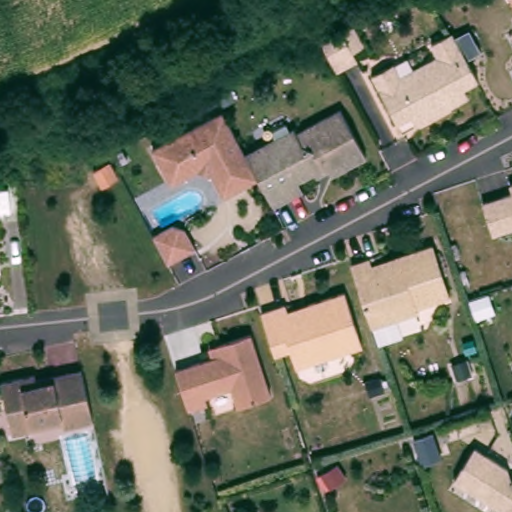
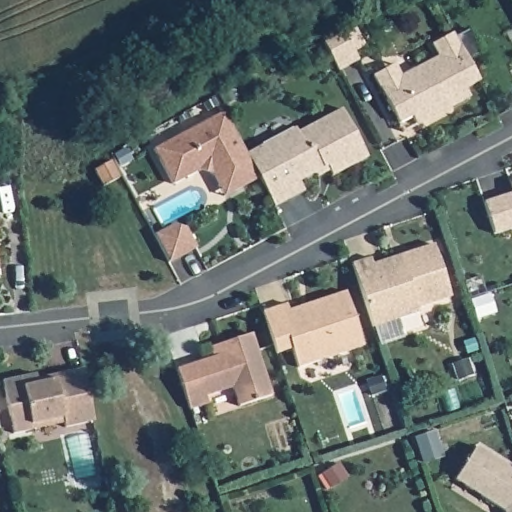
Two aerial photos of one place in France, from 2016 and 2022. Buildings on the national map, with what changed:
unchanged [(359,22),(369,41),(358,47),(363,55),(343,66),(328,37),(348,27),(359,22)]
unchanged [(470,88),(474,97),(421,125),(417,116),(404,123),(384,87),(378,75),(399,64),(406,76),(443,56),(437,44),(458,32),(484,81),(470,88)]
unchanged [(320,167),(303,176),(308,186),(279,201),(264,172),(251,149),(300,122),(302,127),(346,104),(372,152),(337,170),(334,165),(322,171),(320,167)]
unchanged [(223,182),(216,170),(203,165),(177,180),(158,144),(229,107),(251,149),(264,172),(239,186),(228,192),(223,182)]
unchanged [(111,161),(119,177),(103,186),(94,170),(111,161)]
unchanged [(489,202),(512,194),(512,229),(499,234),(489,202)]
unchanged [(173,225),(185,229),(195,247),(168,262),(154,235),(173,225)]
unchanged [(377,259),(404,250),(438,239),(455,292),(422,302),(423,307),(377,322),(357,261),(357,258),(375,252),(377,259)]
unchanged [(1,270),(0,270),(0,256),(1,270)]
unchanged [(286,298),(288,305),(290,312),(312,305),(310,298),(345,287),(363,341),(297,362),(291,343),(276,348),(262,307),(286,298)]
unchanged [(215,347),(223,344),(256,333),(277,395),(243,406),(237,387),(210,396),(213,403),(194,409),(181,368),(218,357),(215,347)]
unchanged [(453,365),(467,360),(472,374),(458,379),(453,365)]
unchanged [(18,433),(6,381),(40,373),(41,378),(58,375),(87,368),(98,421),(69,427),(68,422),(41,428),(18,433)]
unchanged [(367,381),(380,377),(385,390),(372,394),(367,381)]
unchanged [(455,480),(475,447),(507,467),(511,477),(512,477),(512,512),(504,512),(503,510),(455,480)]
unchanged [(322,473),(337,463),(346,477),(330,487),(322,473)]

